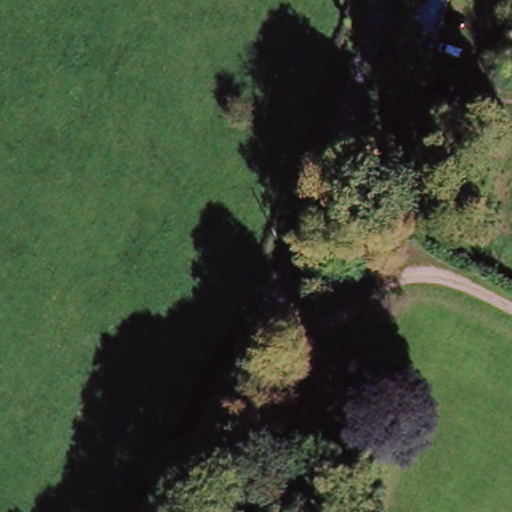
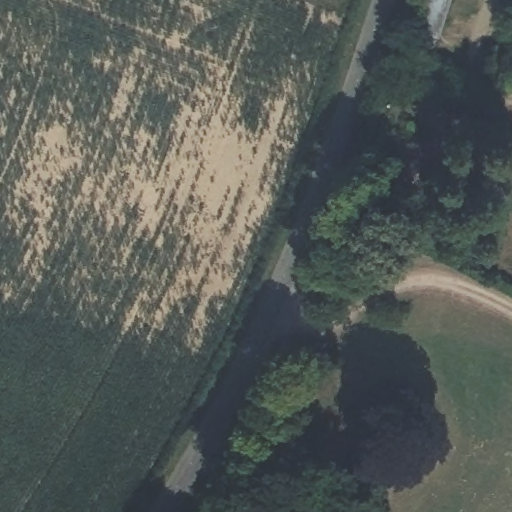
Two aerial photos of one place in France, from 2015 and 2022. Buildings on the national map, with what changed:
unchanged [(417,0),(447,0),(436,36),(408,29),(417,0)]

